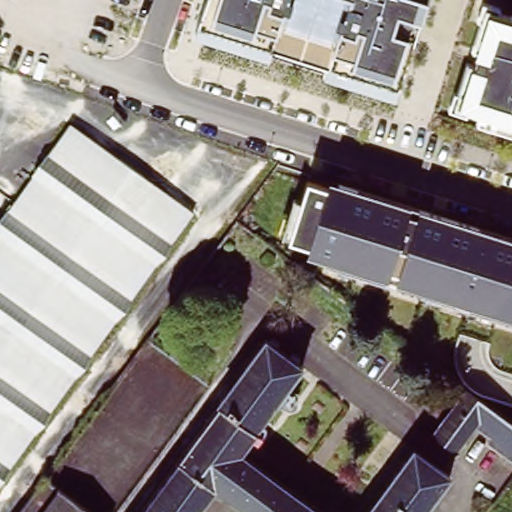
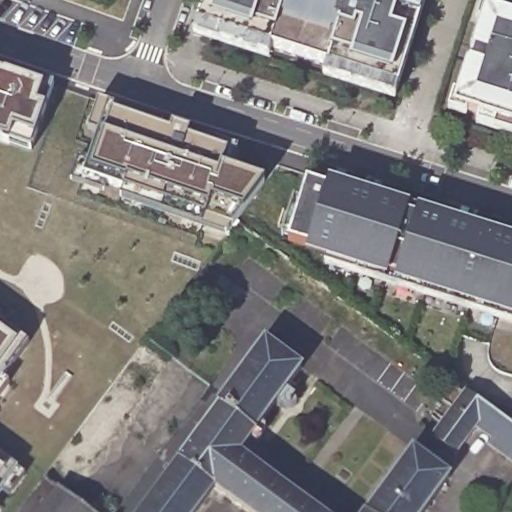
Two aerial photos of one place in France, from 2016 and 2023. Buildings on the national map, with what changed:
unchanged [(322,74),(326,64),(274,48),(271,59),(195,33),(205,0),(426,0),(395,98),(322,74)]
unchanged [(512,16),(512,129),(451,110),(483,7),(512,16)]
new [(0,139),(0,66),(52,84),(45,109),(35,137),(30,149),(8,142),(0,139)]
new [(121,194),(124,189),(86,176),(112,106),(162,123),(160,129),(170,132),(171,125),(191,131),(188,139),(227,152),(221,167),(264,182),(242,210),(234,221),(224,234),(121,194)]
demolished [(195,215),(0,489),(0,234),(74,130),(195,215)]
unchanged [(326,186),(328,179),(512,237),(512,319),(305,255),(307,246),(288,241),(306,180),(326,186)]
new [(0,374),(0,322),(25,340),(0,374)]
unchanged [(220,404),(219,403),(266,338),(304,366),(257,429),(259,430),(244,451),(328,512),(249,512),(217,489),(200,512),(142,512),(220,404)]
unchanged [(490,445),(494,439),(479,428),(457,456),(433,438),(467,390),(512,422),(512,461),(490,445)]
unchanged [(368,509),(369,509),(415,446),(451,473),(423,512),(365,512),(368,509)]
new [(0,490),(0,457),(15,468),(0,490)]
unchanged [(46,480),(91,512),(22,512),(46,480)]

